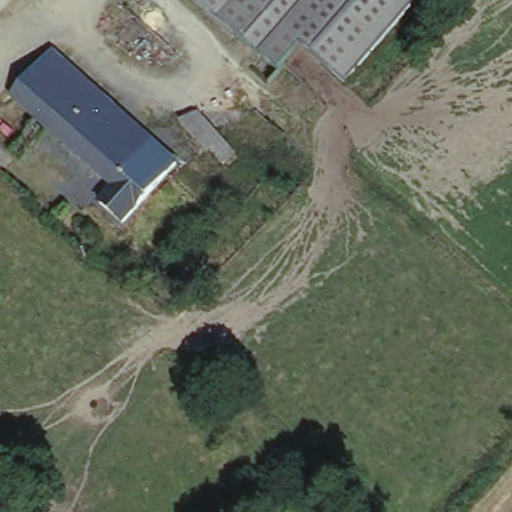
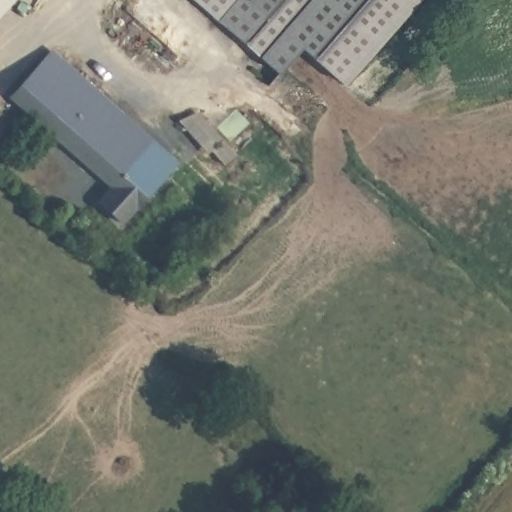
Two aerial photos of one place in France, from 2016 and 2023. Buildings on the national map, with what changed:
unchanged [(0,0),(15,0),(0,16),(0,0)]
unchanged [(300,49),(277,75),(188,0),(416,0),(339,85),(300,49)]
unchanged [(154,188),(116,230),(92,207),(107,191),(65,152),(13,106),(34,81),(46,69),(97,116),(104,107),(131,131),(171,168),(154,188)]
unchanged [(195,113),(238,159),(223,169),(174,122),(195,113)]

